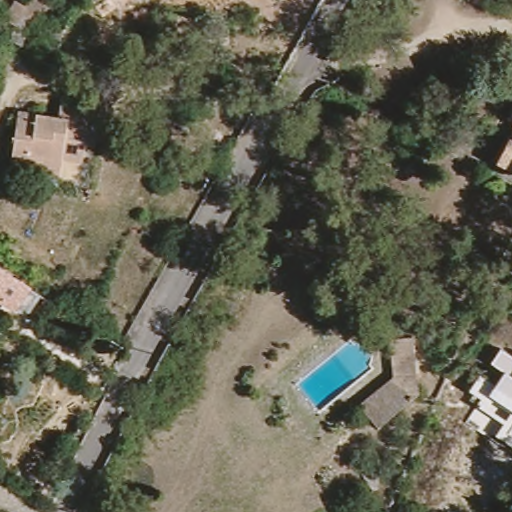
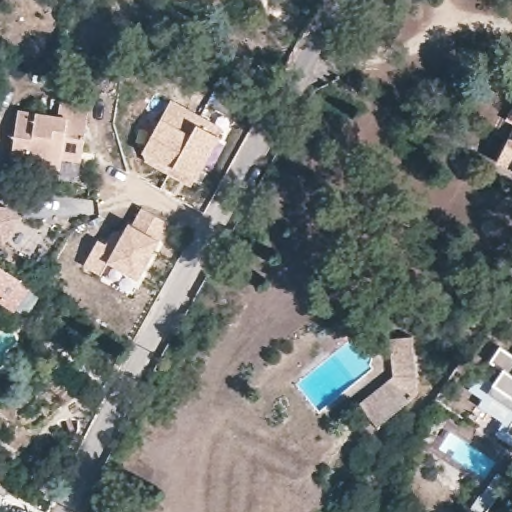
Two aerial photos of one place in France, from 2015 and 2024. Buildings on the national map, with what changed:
unchanged [(48,26),(63,32),(58,42),(44,35),(48,26)]
new [(195,179),(191,187),(147,162),(144,151),(163,118),(172,100),(223,128),(218,136),(221,137),(197,180),(195,179)]
unchanged [(10,167),(18,112),(58,117),(60,102),(65,103),(89,107),(88,114),(81,161),(62,157),(59,175),(48,174),(10,167)]
unchanged [(511,121),(512,118),(512,122),(511,121)]
unchanged [(512,137),(512,167),(501,162),(512,137)]
new [(23,216),(3,245),(0,243),(0,205),(7,206),(23,216)]
new [(105,242),(115,229),(122,234),(129,222),(132,224),(141,206),(168,221),(156,237),(160,240),(139,278),(108,261),(101,272),(83,263),(98,238),(105,242)]
unchanged [(0,299),(0,268),(29,288),(13,309),(0,299)]
unchanged [(418,342),(418,398),(381,426),(363,402),(391,380),(392,342),(418,342)]
new [(492,396),(488,402),(470,389),(482,371),(497,381),(505,371),(492,362),(502,347),(512,354),(512,409),(492,396)]
demolished [(445,378),(475,394),(465,415),(435,399),(445,378)]
new [(512,410),(512,445),(496,434),(512,410)]

